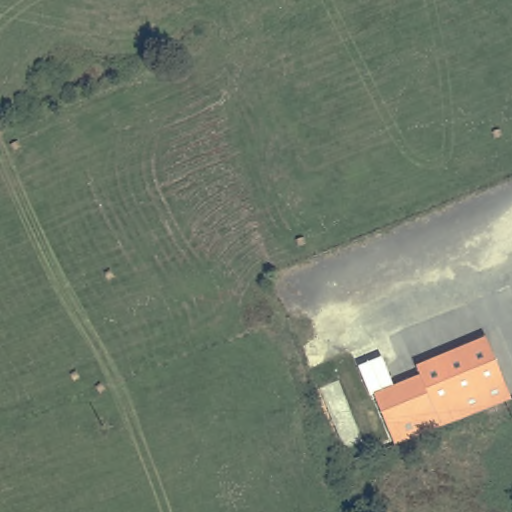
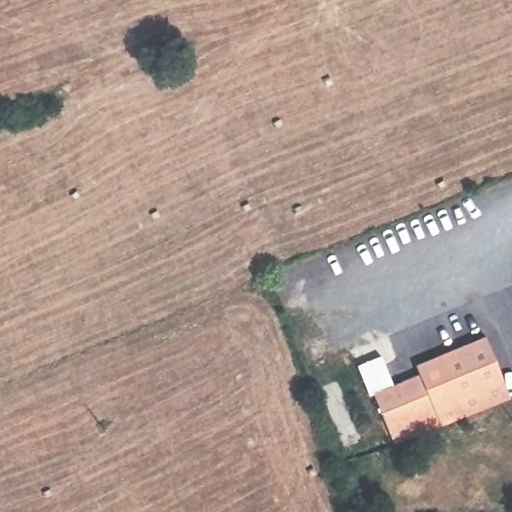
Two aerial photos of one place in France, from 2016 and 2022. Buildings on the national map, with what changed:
unchanged [(420,384),(416,374),(486,347),(505,393),(387,439),(373,402),(420,384)]

